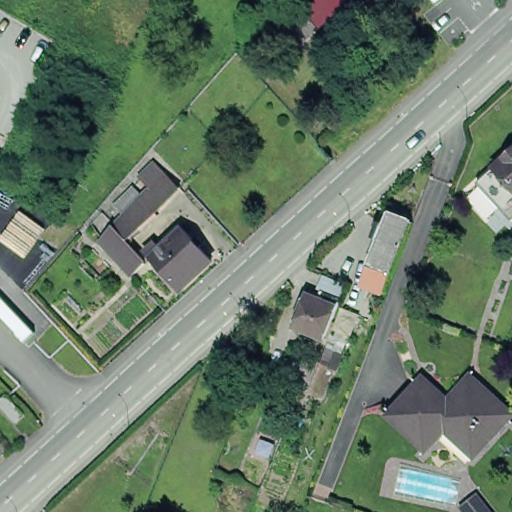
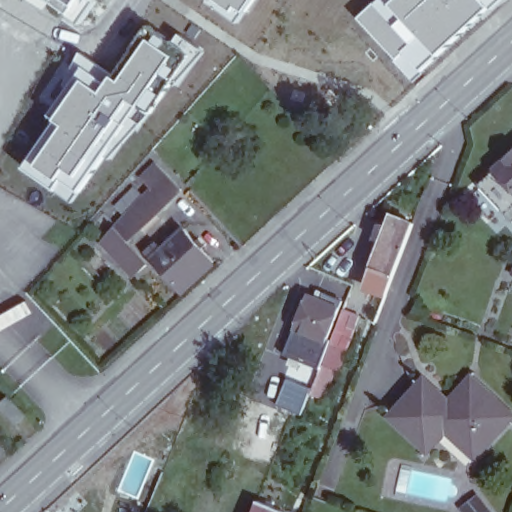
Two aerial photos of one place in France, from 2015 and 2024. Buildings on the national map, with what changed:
new [(78,24),(46,4),(41,0),(94,0),(78,24)]
new [(245,22),(214,0),(259,0),(245,22)]
demolished [(278,36),(296,17),(314,0),(335,0),(340,5),(312,34),(294,52),(278,36)]
new [(412,77),(360,16),(376,0),(499,0),(412,77)]
new [(225,66),(91,213),(12,161),(84,47),(121,75),(155,21),(225,66)]
demolished [(257,39),(265,46),(254,57),(246,50),(257,39)]
unchanged [(512,153),(512,189),(495,170),(512,153)]
unchanged [(102,242),(114,229),(142,199),(153,188),(142,177),(157,163),(182,190),(170,201),(156,214),(126,242),(147,264),(134,276),(102,242)]
unchanged [(376,268),(373,267),(382,242),(375,239),(380,225),(388,227),(392,216),(413,224),(394,275),(390,284),(385,300),(375,296),(366,292),(376,268)]
unchanged [(146,252),(156,243),(162,249),(185,229),(215,261),(182,291),(146,252)]
unchanged [(327,349),(300,338),(314,306),(327,311),(330,305),(342,310),(347,312),(345,318),(331,351),(327,349)]
unchanged [(311,394),(301,391),(295,388),(306,357),(313,360),(323,364),(315,385),(311,394)]
unchanged [(448,435),(425,459),(395,430),(405,418),(400,413),(417,395),(429,407),(433,401),(443,410),(466,386),(493,410),(496,413),(492,417),(505,430),(476,461),(475,460),(448,435)]
unchanged [(10,396),(26,415),(18,422),(1,403),(10,396)]
unchanged [(493,512),(464,512),(462,509),(480,493),(493,512)]
new [(246,512),(249,504),(269,512),(246,512)]

